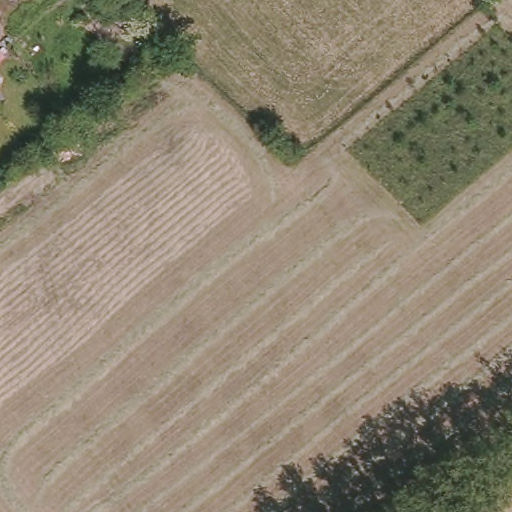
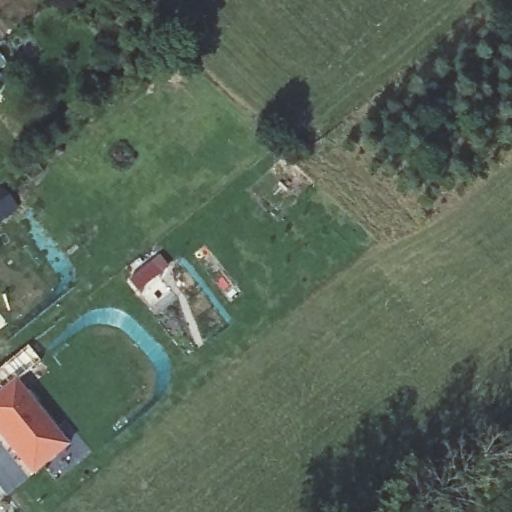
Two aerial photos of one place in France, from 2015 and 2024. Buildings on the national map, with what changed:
unchanged [(132,0),(147,15),(138,24),(117,0),(132,0)]
new [(19,209),(0,223),(0,189),(2,187),(19,209)]
new [(32,477),(0,437),(0,392),(17,378),(70,446),(32,477)]

